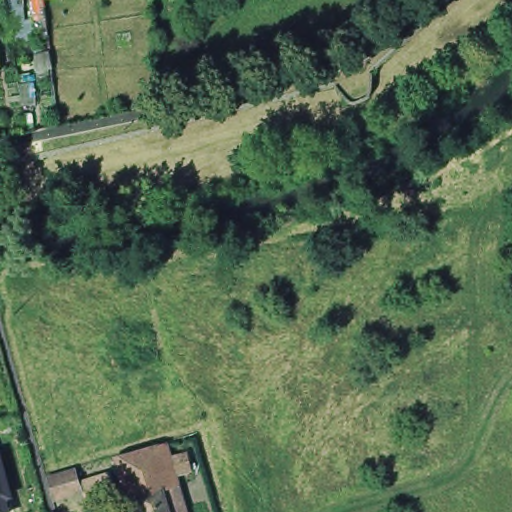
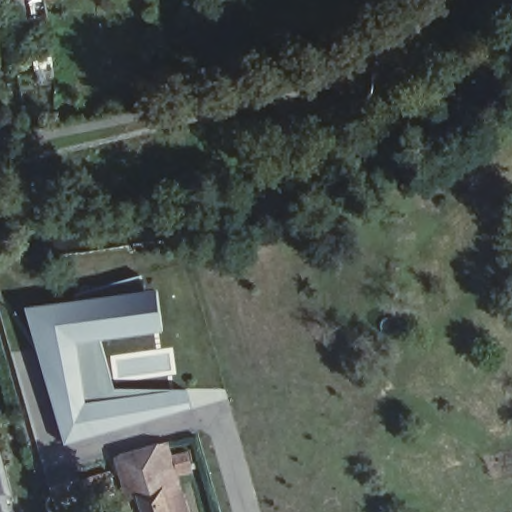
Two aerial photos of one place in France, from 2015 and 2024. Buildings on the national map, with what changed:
unchanged [(371,99),(350,108),(327,72),(352,65),(367,56),(371,99)]
new [(160,337),(100,342),(114,391),(184,388),(192,416),(63,448),(22,308),(155,295),(160,337)]
unchanged [(130,500),(117,458),(162,446),(174,487),(181,512),(123,512),(120,502),(130,500)]
unchanged [(0,457),(10,493),(4,495),(9,512),(0,512),(0,457)]
new [(47,476),(78,467),(85,492),(55,502),(47,476)]

